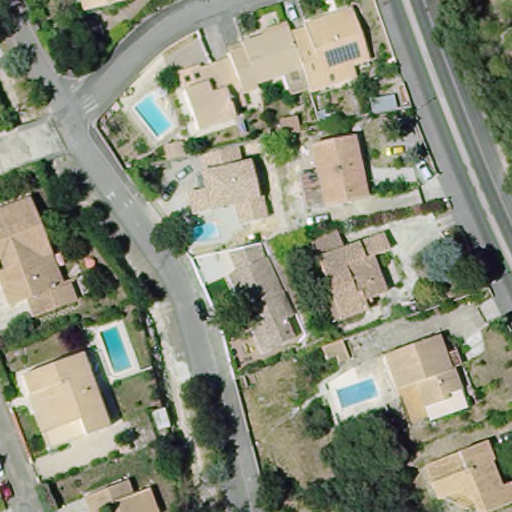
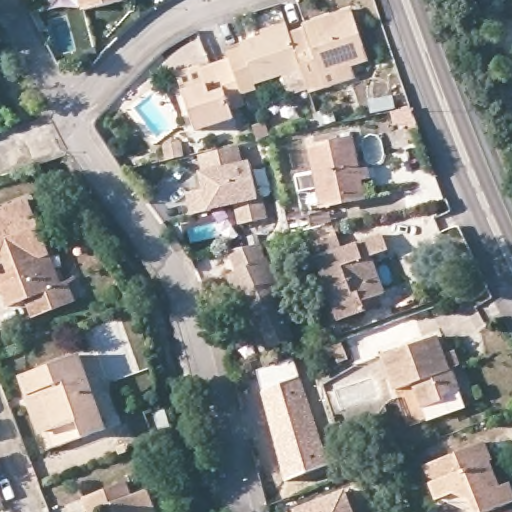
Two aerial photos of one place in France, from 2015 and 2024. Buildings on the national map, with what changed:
unchanged [(86,0),(130,0),(88,10),(86,0)]
unchanged [(325,92),(310,97),(301,72),(290,39),(305,34),(305,30),(353,14),(370,65),(353,70),(357,81),(325,92)]
unchanged [(230,65),(228,60),(245,55),(242,49),(288,34),(290,39),(301,72),(255,89),(258,95),(241,99),(230,65)]
unchanged [(243,104),(231,107),(235,122),(198,135),(184,97),(181,90),(205,80),(203,75),(230,65),(241,99),(243,104)]
unchanged [(366,201),(306,214),(299,180),(316,176),(312,153),(355,144),(366,201)]
unchanged [(186,195),(204,190),(200,173),(197,157),(239,146),(242,163),(250,161),(257,197),(264,195),(267,217),(237,225),(233,205),(206,211),(191,215),(186,195)]
unchanged [(72,286),(81,304),(37,321),(30,303),(11,310),(0,280),(0,217),(33,204),(55,256),(68,288),(72,286)]
unchanged [(385,254),(367,260),(381,297),(358,305),(362,316),(335,325),(312,263),(305,244),(332,235),(338,254),(379,239),(385,254)]
unchanged [(245,310),(229,275),(237,271),(227,250),(260,242),(294,315),(285,319),(294,339),(273,348),(264,352),(245,310)]
unchanged [(411,427),(396,390),(384,356),(438,336),(450,370),(453,369),(461,390),(445,395),(447,399),(425,407),(428,420),(411,427)]
new [(284,481),(269,430),(260,390),(255,370),(294,359),(300,376),(331,465),(284,481)]
unchanged [(20,381),(78,360),(105,433),(82,441),(77,426),(55,435),(40,396),(27,401),(20,381)]
unchanged [(47,455),(27,401),(40,396),(55,435),(77,426),(82,441),(47,455)]
unchanged [(418,471),(481,447),(488,465),(485,465),(495,491),(505,487),(512,505),(496,512),(450,512),(432,505),(418,471)]
unchanged [(88,497),(131,481),(136,495),(152,490),(161,512),(93,512),(88,497)]
new [(345,493),(353,512),(303,512),(302,510),(345,493)]

